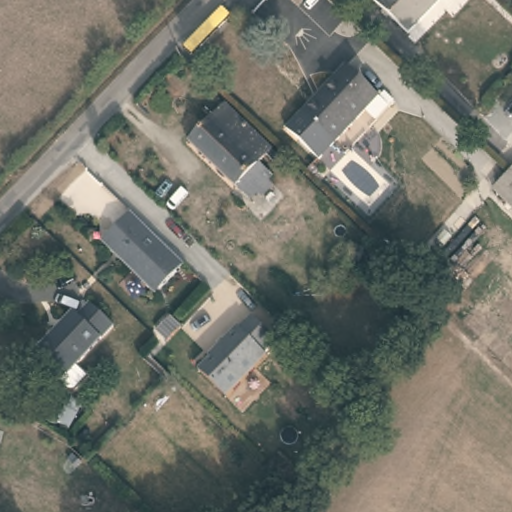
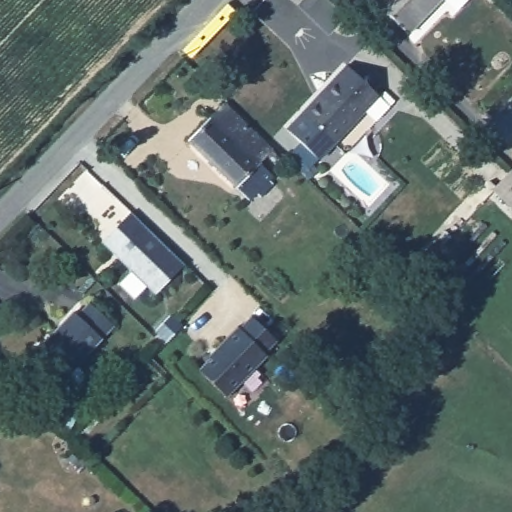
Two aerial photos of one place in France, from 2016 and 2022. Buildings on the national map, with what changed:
unchanged [(374,0),(440,0),(408,34),(374,0)]
unchanged [(288,131),(347,67),(378,96),(320,160),(288,131)]
unchanged [(385,92),(395,101),(390,107),(380,97),(385,92)]
unchanged [(267,154),(259,163),(273,176),(268,181),(278,191),(267,202),(257,193),(250,200),(190,142),(224,106),(271,150),(284,162),(280,166),(267,154)]
unchanged [(512,171),(512,205),(495,188),(512,171)]
unchanged [(131,215),(185,265),(156,296),(100,242),(131,215)]
unchanged [(75,352),(84,360),(72,373),(66,373),(61,368),(55,375),(29,350),(42,335),(40,333),(73,297),(79,302),(90,289),(114,311),(75,352)]
unchanged [(197,367),(235,326),(240,330),(251,317),(278,343),(226,397),(197,367)]

